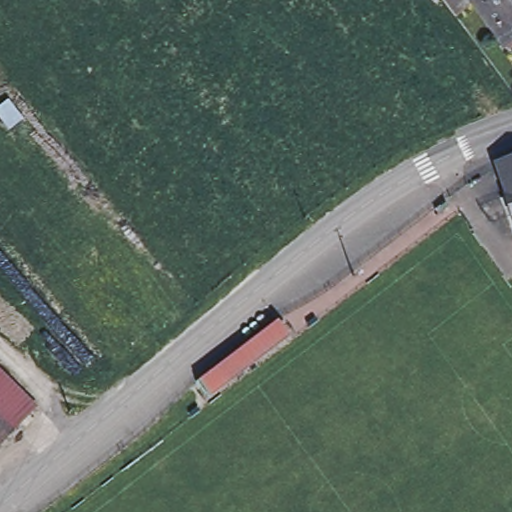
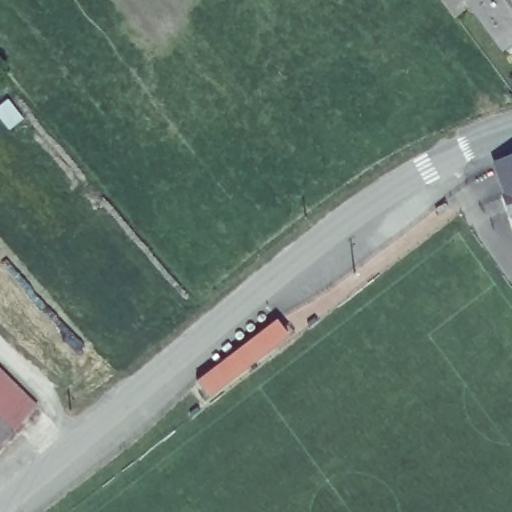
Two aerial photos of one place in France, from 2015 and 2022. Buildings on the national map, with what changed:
unchanged [(467,5),(450,16),(438,0),(465,0),(467,3),(471,0),(512,0),(512,37),(499,47),(467,5)]
unchanged [(497,173),(501,164),(512,160),(512,215),(497,173)]
unchanged [(196,381),(279,319),(283,325),(290,334),(208,397),(202,388),(196,381)]
unchanged [(0,446),(0,370),(38,407),(0,446)]

